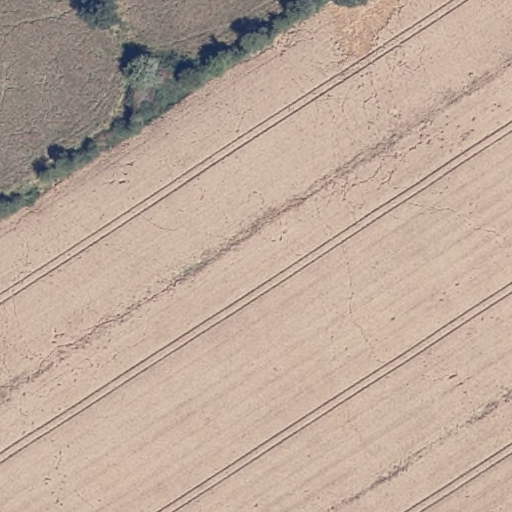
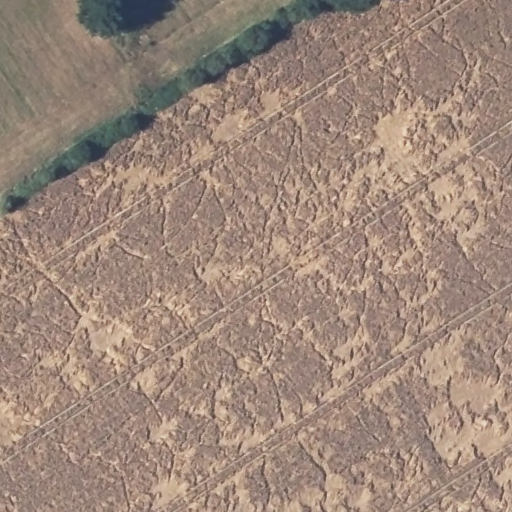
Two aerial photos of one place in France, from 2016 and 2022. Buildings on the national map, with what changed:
[]

